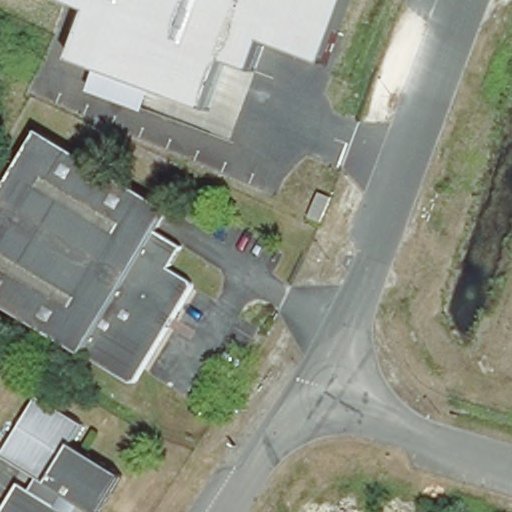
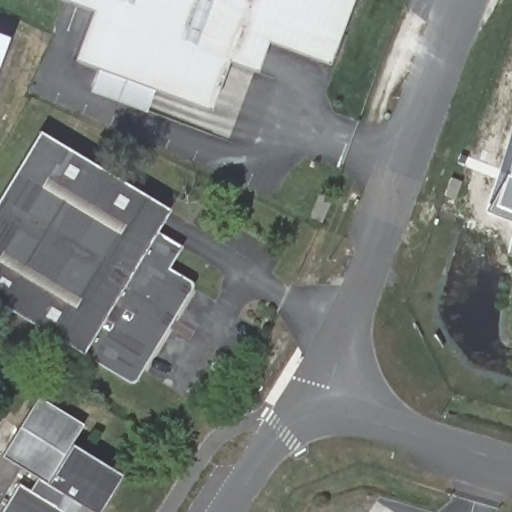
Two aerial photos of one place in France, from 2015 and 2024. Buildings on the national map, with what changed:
unchanged [(147,113),(90,93),(101,68),(72,59),(90,10),(61,0),(352,0),(328,64),(267,41),(256,70),(224,60),(207,108),(159,89),(147,113)]
new [(0,64),(0,34),(10,38),(0,64)]
unchanged [(153,223),(179,238),(166,260),(191,274),(132,378),(0,302),(0,184),(33,126),(165,202),(153,223)]
new [(506,220),(483,210),(502,172),(505,173),(512,150),(512,222),(506,220)]
new [(508,252),(512,234),(512,253),(508,252)]
unchanged [(85,424),(71,443),(120,477),(117,483),(97,512),(90,512),(64,494),(56,505),(65,512),(11,512),(29,487),(39,494),(45,482),(1,451),(40,393),(85,424)]

